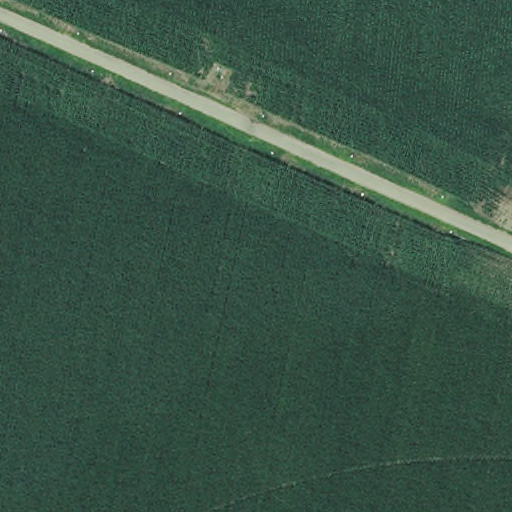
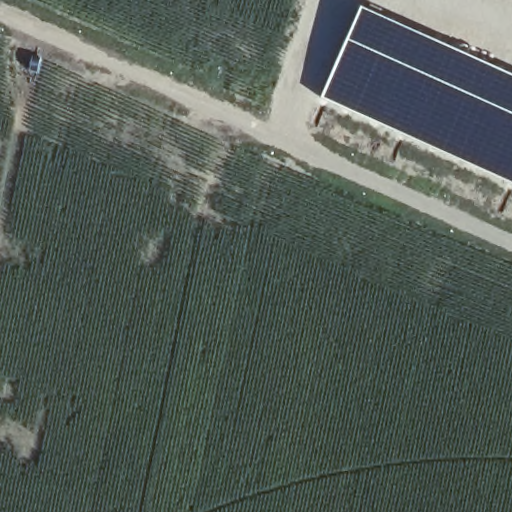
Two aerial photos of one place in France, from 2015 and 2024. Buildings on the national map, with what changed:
new [(362,5),(512,73),(512,185),(320,97),(362,5)]

